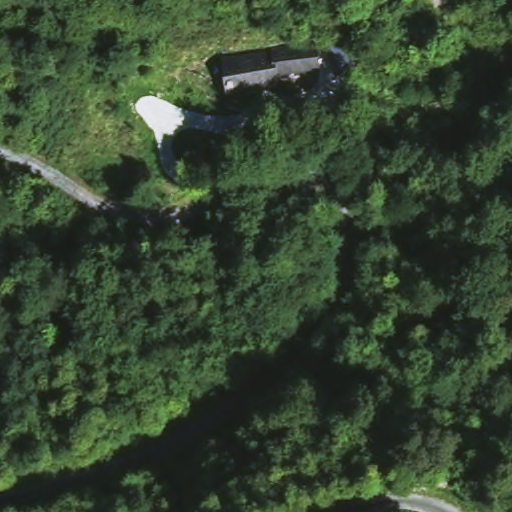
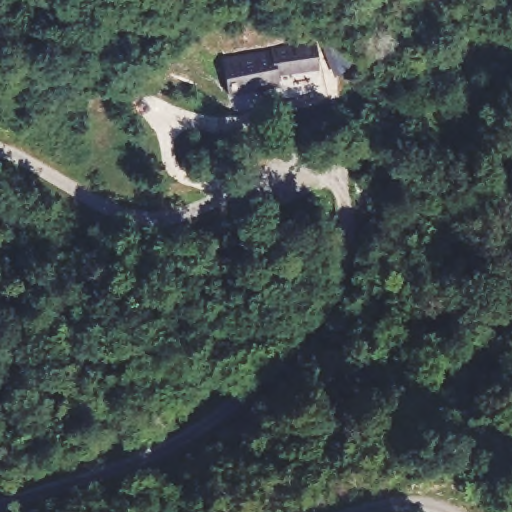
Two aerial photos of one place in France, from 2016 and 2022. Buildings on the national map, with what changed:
unchanged [(319,71),(278,77),(279,89),(227,94),(223,57),(315,45),(319,71)]

